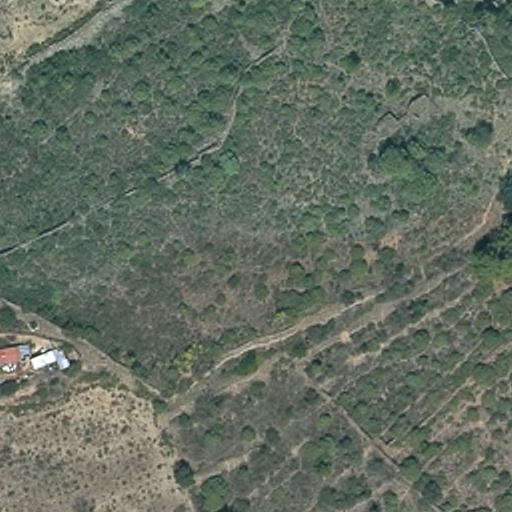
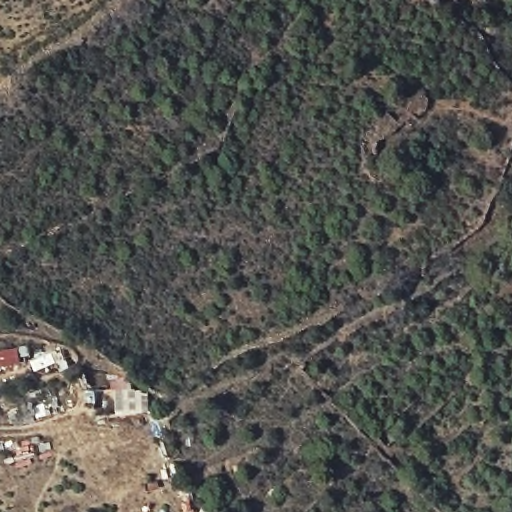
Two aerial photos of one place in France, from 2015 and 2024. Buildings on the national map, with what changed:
unchanged [(15,343),(19,362),(0,365),(0,346),(15,343)]

